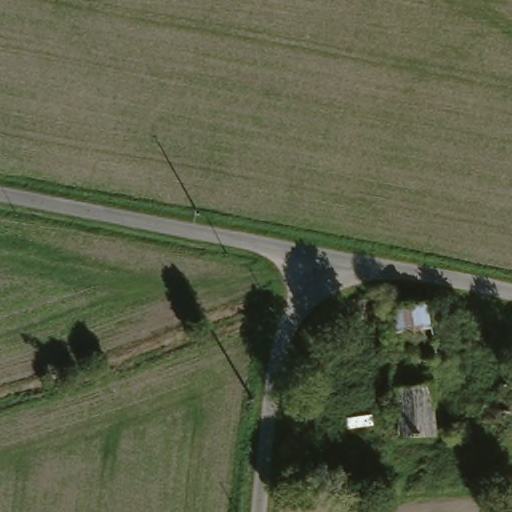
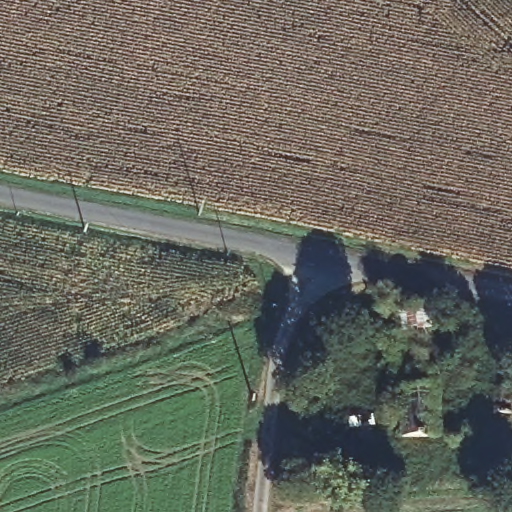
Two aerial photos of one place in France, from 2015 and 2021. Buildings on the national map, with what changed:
unchanged [(409,400),(402,400),(401,366),(407,366),(436,364),(438,398),(409,400)]
unchanged [(409,400),(438,398),(440,434),(406,437),(402,400),(409,400)]

